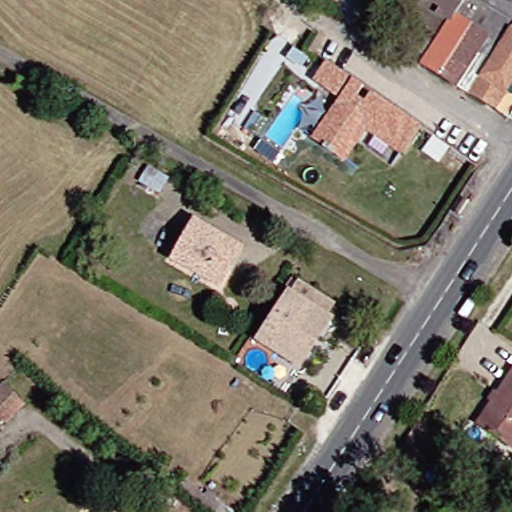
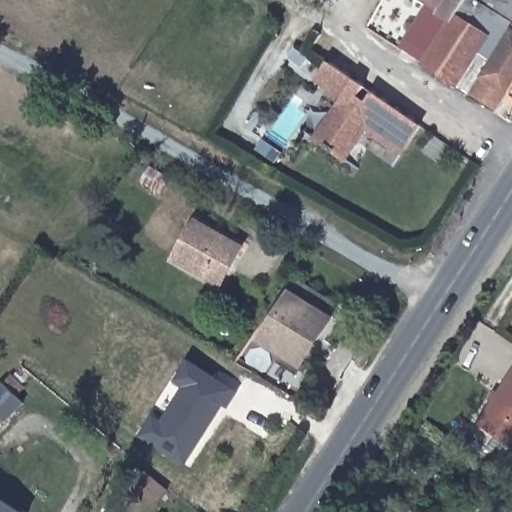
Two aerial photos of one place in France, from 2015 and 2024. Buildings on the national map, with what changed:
unchanged [(447,17),(430,7),(434,1),(432,0),(480,0),(512,20),(512,75),(492,105),(420,60),(447,17)]
unchanged [(512,0),(512,20),(480,0),(512,0)]
unchanged [(368,125),(346,156),(335,147),(334,150),(325,144),(327,142),(316,134),(338,102),(343,95),(318,76),(330,59),(365,84),(359,92),(367,99),(373,90),(421,123),(402,150),(368,125)]
unchanged [(267,136),(286,149),(277,161),(259,148),(267,136)]
unchanged [(154,166),(175,178),(165,194),(145,182),(154,166)]
unchanged [(190,226),(236,254),(214,290),(168,262),(190,226)]
unchanged [(288,369),(250,344),(278,300),(287,286),(322,308),(315,320),(319,322),(288,369)]
new [(228,411),(223,407),(184,467),(138,438),(152,415),(161,421),(183,388),(173,382),(188,360),(238,392),(228,411)]
unchanged [(512,373),(512,435),(504,447),(470,425),(484,403),(479,400),(485,391),(491,393),(507,370),(512,373)]
unchanged [(27,403),(8,423),(5,421),(0,426),(0,387),(5,382),(27,403)]
new [(0,499),(20,512),(0,512),(0,499)]

